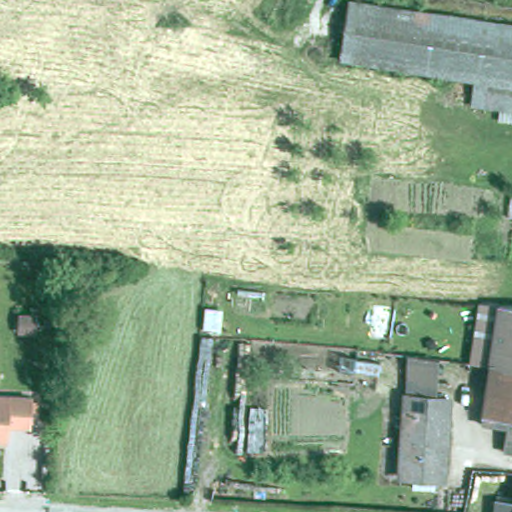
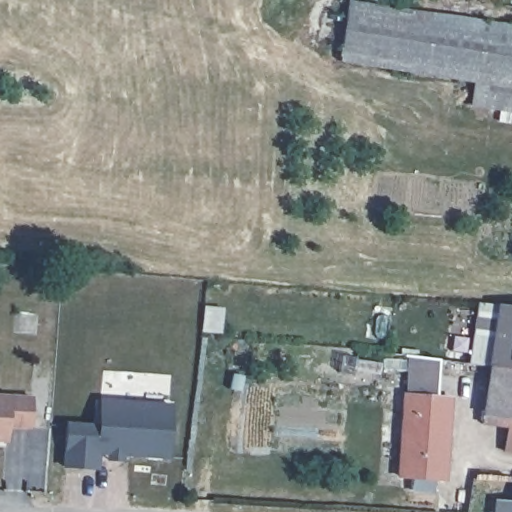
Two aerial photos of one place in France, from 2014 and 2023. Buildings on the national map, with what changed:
unchanged [(512,31),(512,117),(466,110),(470,89),(349,69),(360,7),(512,31)]
new [(203,306),(224,308),(221,334),(201,332),(203,306)]
unchanged [(498,370),(491,368),(499,313),(512,315),(512,372),(498,370)]
unchanged [(408,361),(438,365),(437,395),(407,392),(408,361)]
unchanged [(482,428),(491,368),(498,370),(512,372),(512,431),(482,428)]
unchanged [(449,399),(444,480),(436,479),(436,489),(414,487),(414,477),(401,477),(407,396),(449,399)]
unchanged [(31,430),(9,429),(8,444),(0,443),(0,398),(32,400),(31,430)]
new [(96,425),(99,400),(173,404),(168,460),(123,457),(123,461),(106,460),(106,455),(98,455),(97,470),(63,468),(65,422),(96,425)]
unchanged [(496,500),(512,501),(512,512),(494,512),(496,500)]

